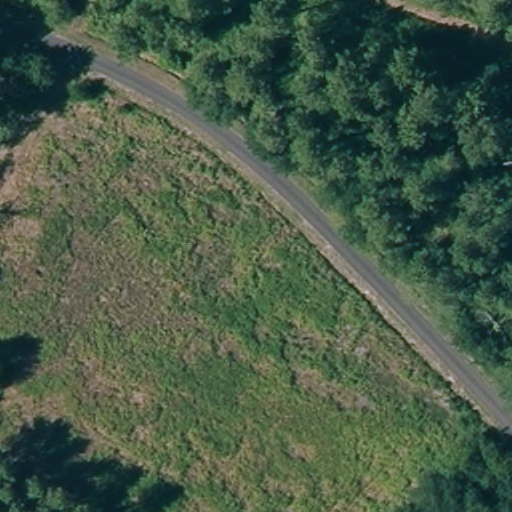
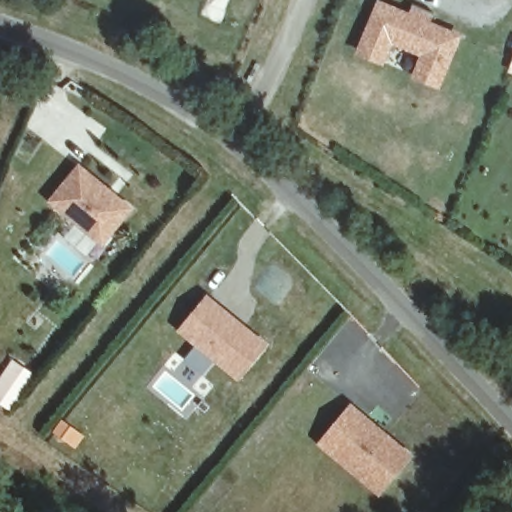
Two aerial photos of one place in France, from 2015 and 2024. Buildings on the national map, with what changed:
new [(413,4),(434,13),(430,20),(463,33),(440,89),(410,78),(419,55),(393,44),(384,66),(354,54),(376,0),(380,0),(409,12),(413,4)]
new [(508,71),(512,62),(512,73),(508,71)]
unchanged [(26,88),(15,82),(19,75),(30,81),(26,88)]
new [(134,209),(101,247),(46,199),(78,161),(134,209)]
new [(268,343),(238,381),(176,330),(208,293),(268,343)]
new [(413,453),(378,494),(317,443),(352,402),(413,453)]

